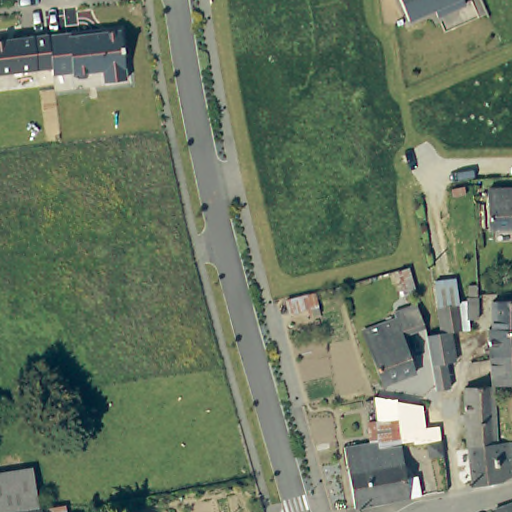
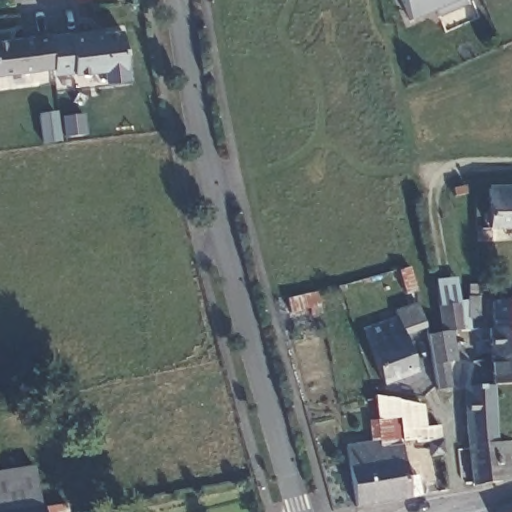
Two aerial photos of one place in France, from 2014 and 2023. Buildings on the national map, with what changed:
unchanged [(432,5),(406,16),(400,0),(461,0),(435,12),(432,5)]
unchanged [(101,30),(101,32),(120,30),(126,80),(102,82),(101,71),(72,75),(71,72),(53,75),(52,64),(49,36),(101,30)]
unchanged [(48,31),(52,64),(0,70),(0,37),(48,31)]
unchanged [(512,189),(512,230),(492,232),(489,195),(488,191),(512,189)]
unchanged [(429,385),(425,360),(421,329),(437,327),(443,326),(439,300),(459,297),(462,325),(448,326),(452,358),(450,358),(438,359),(441,384),(429,385)]
unchanged [(492,301),(512,300),(512,353),(508,353),(490,355),(487,323),(493,323),(492,301)]
unchanged [(410,376),(377,389),(359,335),(392,323),(410,376)]
unchanged [(490,355),(508,353),(512,353),(512,382),(495,384),(493,384),(490,355)]
unchanged [(495,384),(504,439),(468,442),(459,388),(489,385),(493,384),(495,384)]
unchanged [(362,424),(372,423),(369,399),(410,404),(418,442),(397,445),(386,446),(376,448),(375,441),(365,443),(362,424)]
unchanged [(512,476),(509,477),(481,482),(475,483),(468,442),(504,439),(512,439),(512,476)]
unchanged [(415,498),(405,500),(354,508),(350,480),(343,450),(376,448),(386,446),(397,445),(403,485),(413,484),(415,498)]
unchanged [(42,511),(39,512),(0,512),(0,477),(35,470),(42,511)]
unchanged [(492,511),(512,505),(512,512),(489,512),(492,511)]
unchanged [(42,511),(45,511),(68,507),(69,512),(39,512),(42,511)]

